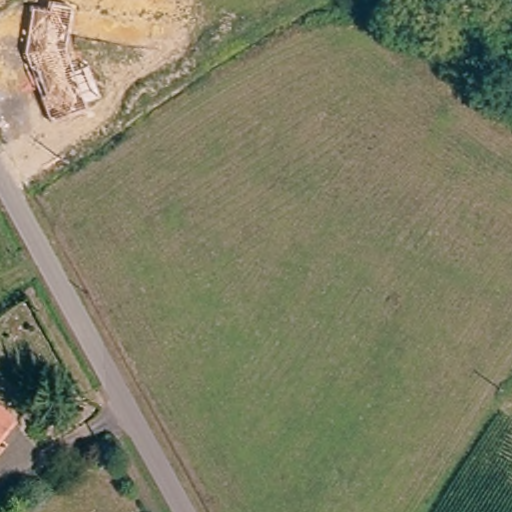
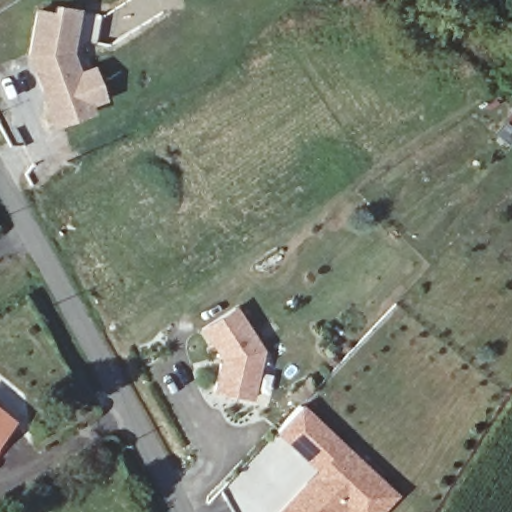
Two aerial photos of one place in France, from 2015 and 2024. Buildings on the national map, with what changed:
new [(71,50),(78,69),(93,65),(104,98),(90,105),(93,114),(52,127),(26,55),(34,7),(51,9),(53,3),(77,9),(71,50)]
new [(230,303),(257,346),(247,394),(210,386),(217,353),(198,324),(230,303)]
new [(342,509),(337,505),(331,512),(270,512),(301,479),(313,466),(298,451),(271,425),(294,401),(321,427),(336,442),(373,477),(387,491),(368,512),(345,512),(342,509)]
unchanged [(0,438),(0,421),(8,427),(0,438)]

